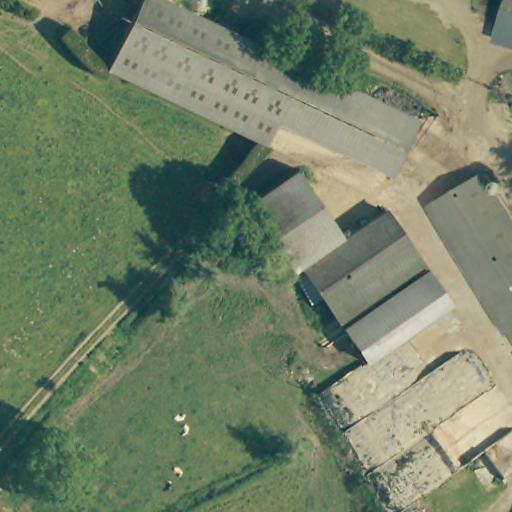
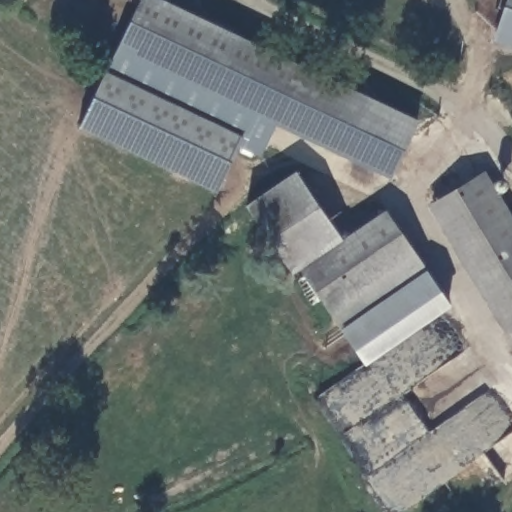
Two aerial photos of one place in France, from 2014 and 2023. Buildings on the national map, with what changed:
unchanged [(387,175),(302,137),(271,124),(261,145),(103,73),(135,0),(159,0),(343,85),(413,118),(387,175)]
unchanged [(512,0),(512,43),(492,36),(504,0),(512,0)]
new [(261,145),(257,155),(240,147),(219,192),(79,125),(103,73),(261,145)]
unchanged [(239,203),(240,201),(246,197),(286,168),(333,234),(378,202),(410,248),(451,305),(365,364),(329,306),(298,261),(286,270),(240,205),(239,203)]
unchanged [(512,334),(433,202),(480,174),(512,218),(512,334)]

